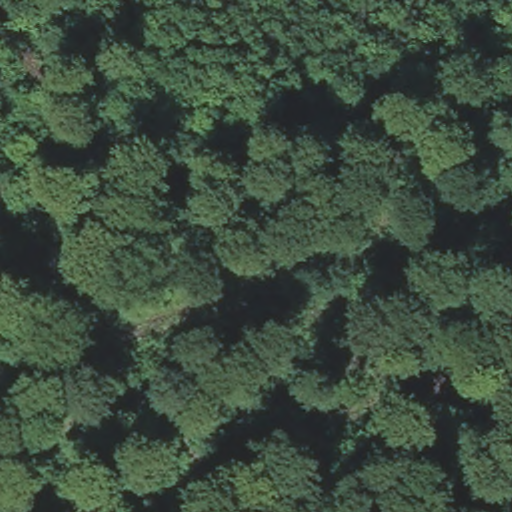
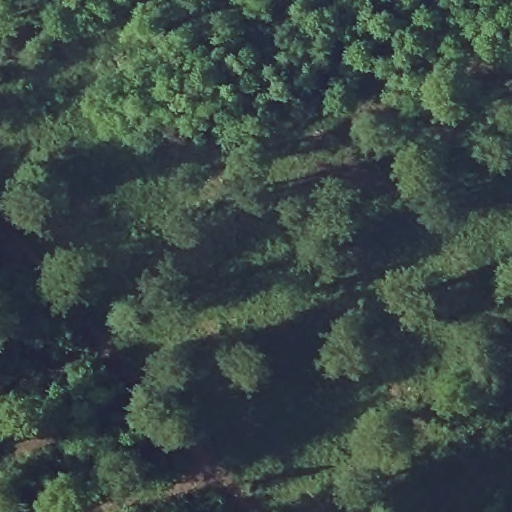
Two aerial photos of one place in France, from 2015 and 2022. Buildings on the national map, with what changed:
[]

